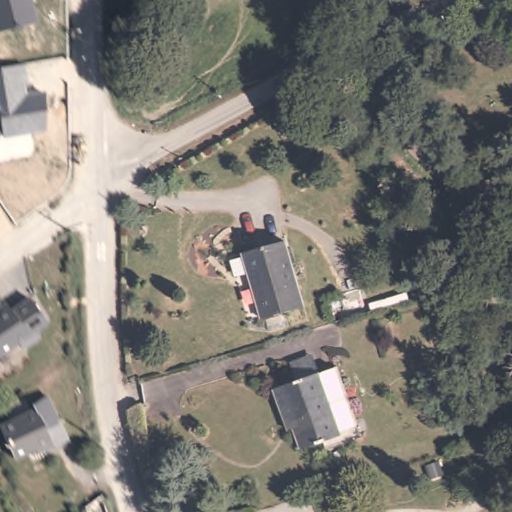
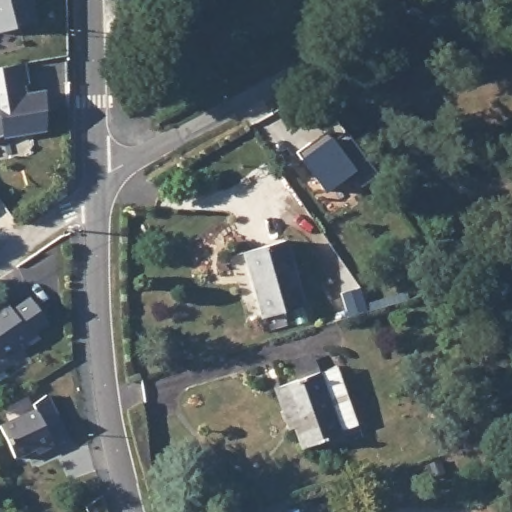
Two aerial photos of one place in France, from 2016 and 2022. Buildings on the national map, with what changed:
unchanged [(0,0),(32,0),(37,20),(0,30),(0,0)]
unchanged [(29,84),(25,84),(26,93),(45,89),(48,130),(1,138),(1,132),(0,133),(0,66),(25,62),(29,84)]
new [(299,160),(330,136),(346,123),(382,174),(365,187),(354,171),(324,194),(299,160)]
unchanged [(284,235),(303,298),(263,310),(244,245),(284,235)]
unchanged [(21,309),(39,296),(56,321),(44,330),(48,335),(32,346),(28,341),(5,357),(0,350),(0,317),(3,315),(0,312),(16,301),(21,309)]
unchanged [(333,367),(350,422),(333,427),(338,439),(298,451),(277,381),(333,367)]
unchanged [(9,430),(45,415),(42,410),(56,401),(66,423),(66,430),(54,435),(61,452),(45,458),(43,454),(22,462),(9,430)]

